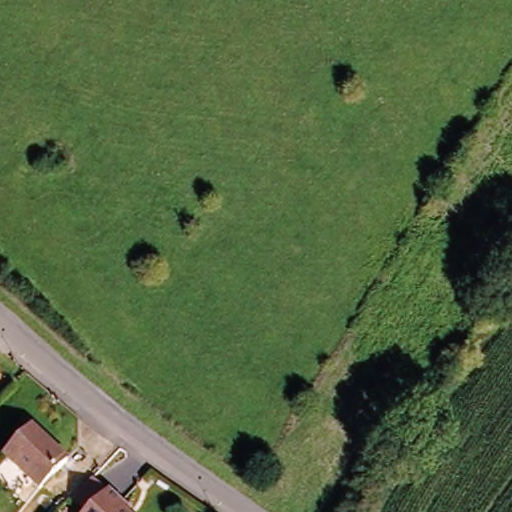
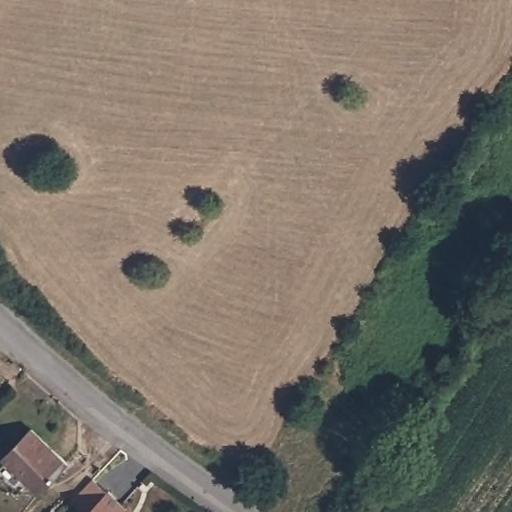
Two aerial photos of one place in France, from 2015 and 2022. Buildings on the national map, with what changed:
unchanged [(34,435),(70,468),(42,498),(5,465),(34,435)]
unchanged [(103,494),(118,507),(117,511),(118,512),(86,512),(103,494)]

